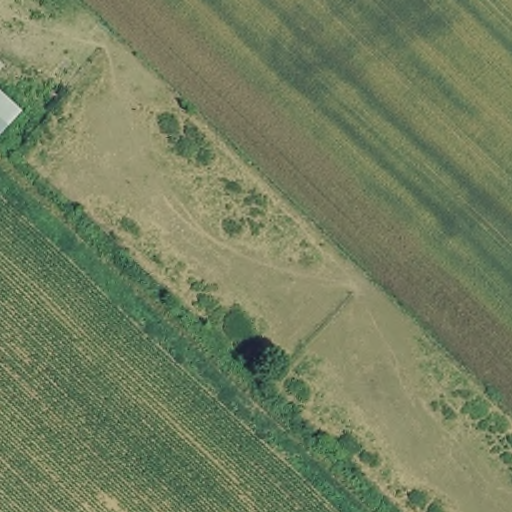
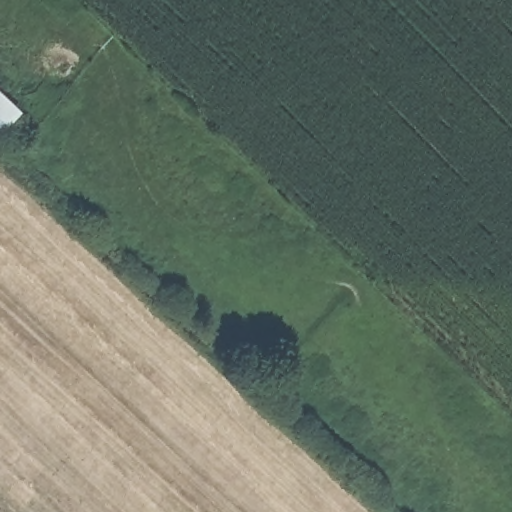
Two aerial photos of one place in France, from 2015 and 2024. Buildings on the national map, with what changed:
unchanged [(3,136),(0,132),(0,86),(25,108),(3,136)]

